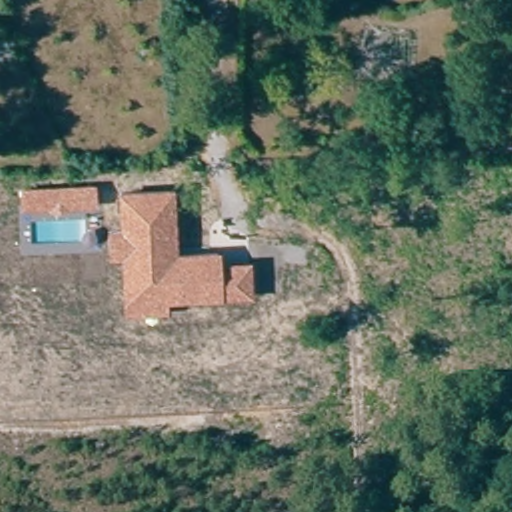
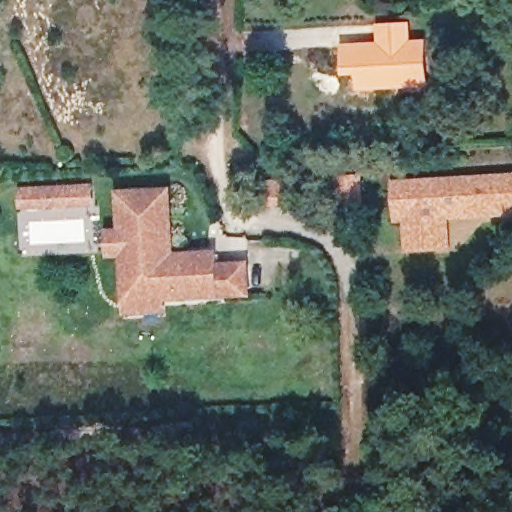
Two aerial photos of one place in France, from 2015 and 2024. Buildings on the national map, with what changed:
new [(377,41),(377,22),(411,21),(413,39),(427,38),(430,87),(354,91),(353,76),(345,76),(342,43),(377,41)]
unchanged [(22,211),(20,188),(96,186),(97,207),(22,211)]
unchanged [(168,302),(169,314),(122,317),(123,304),(121,259),(108,260),(106,228),(119,227),(118,190),(175,188),(177,252),(221,250),(221,263),(252,263),(253,299),(168,302)]
new [(448,262),(441,262),(410,264),(403,265),(401,231),(393,232),(391,201),(406,200),(512,192),(512,229),(446,233),(448,262)]
new [(356,195),(358,220),(345,221),(332,222),(331,196),(344,195),(356,195)]

